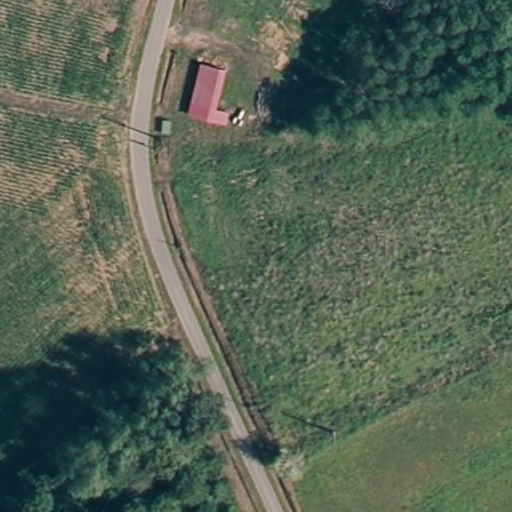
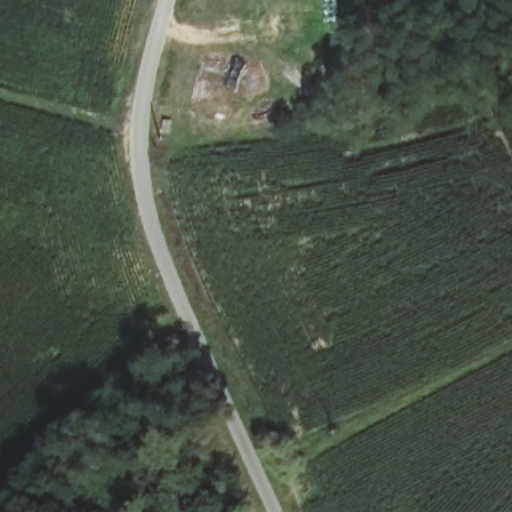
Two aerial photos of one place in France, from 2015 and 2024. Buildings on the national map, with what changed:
demolished [(239,71),(227,126),(188,115),(197,62),(239,71)]

